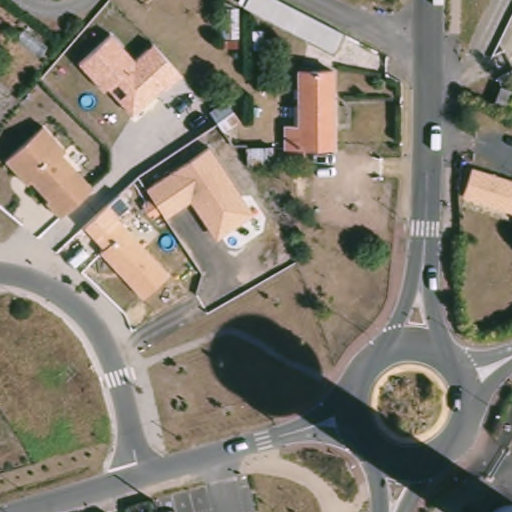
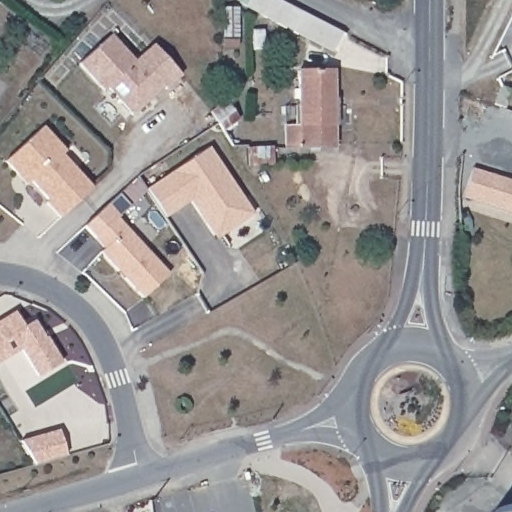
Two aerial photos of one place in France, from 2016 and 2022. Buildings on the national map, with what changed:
unchanged [(282,6),(313,22),(328,30),(342,37),(332,56),(245,11),(251,0),(271,0),(282,6)]
unchanged [(223,52),(223,5),(238,14),(238,52),(223,52)]
unchanged [(111,34),(134,60),(153,43),(181,77),(164,91),(161,89),(131,114),(108,87),(103,91),(80,64),(111,34)]
unchanged [(281,125),(294,125),(294,70),(329,69),(329,149),(282,149),(281,125)]
unchanged [(505,90),(512,92),(512,102),(509,110),(508,110),(499,107),(505,90)]
unchanged [(225,100),(238,119),(222,130),(218,122),(210,111),(225,100)]
unchanged [(28,179),(24,182),(5,160),(41,125),(65,150),(61,155),(91,187),(59,216),(28,179)]
unchanged [(186,197),(163,214),(145,188),(206,147),(252,215),(214,239),(186,197)]
unchanged [(470,170),(512,183),(512,213),(462,196),(470,170)]
unchanged [(129,229),(172,275),(145,297),(99,251),(105,245),(97,236),(118,216),(129,229)]
new [(15,310),(24,325),(37,319),(62,360),(36,376),(19,350),(0,360),(0,319),(15,310)]
new [(20,440),(57,429),(66,455),(34,463),(20,440)]

